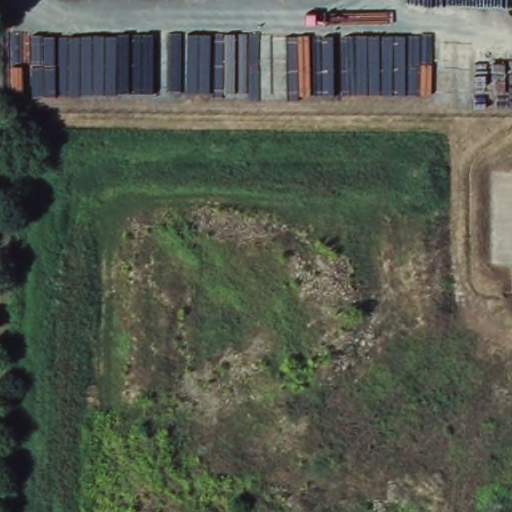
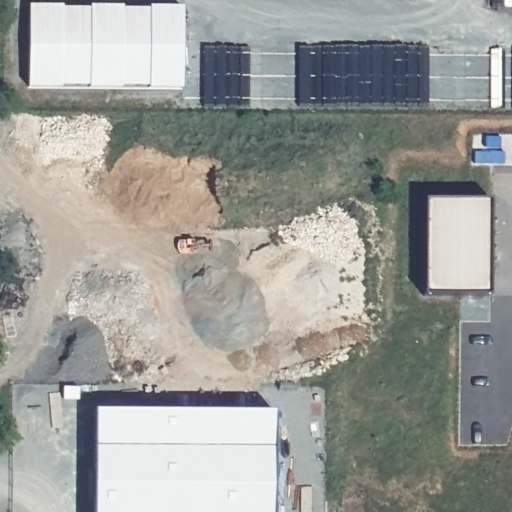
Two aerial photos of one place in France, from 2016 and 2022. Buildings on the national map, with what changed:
new [(31,15),(180,19),(179,89),(29,85),(31,15)]
new [(427,200),(492,200),(491,296),(426,295),(427,200)]
new [(273,412),(272,512),(94,512),(94,411),(273,412)]

